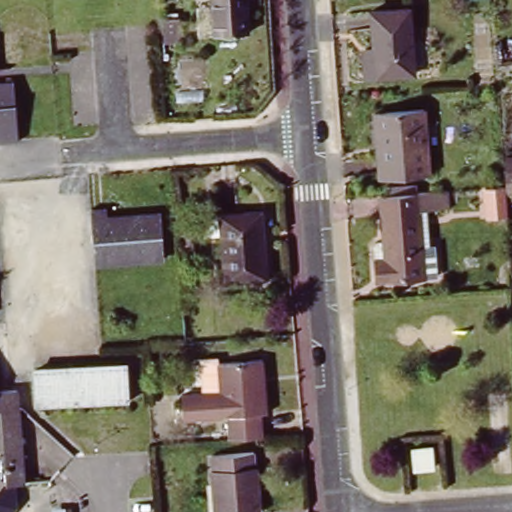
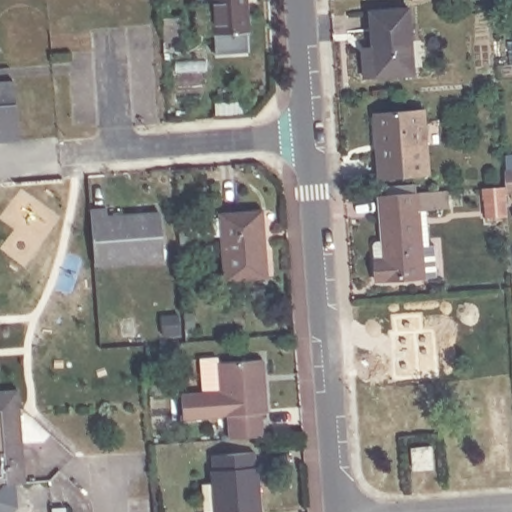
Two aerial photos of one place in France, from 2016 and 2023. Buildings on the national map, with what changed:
unchanged [(212,0),(244,0),(246,24),(214,27),(212,0)]
demolished [(494,0),(510,0),(512,21),(512,41),(497,43),(494,0)]
unchanged [(371,11),(409,7),(414,65),(362,70),(359,39),(373,38),(371,11)]
unchanged [(18,141),(0,142),(0,80),(13,79),(18,141)]
unchanged [(383,110),(422,105),(429,170),(381,175),(378,152),(387,151),(383,110)]
unchanged [(509,180),(508,177),(508,164),(512,164),(512,180),(509,180)]
unchanged [(371,259),(382,258),(376,199),(394,198),(393,190),(421,188),(421,195),(444,193),(447,209),(419,212),(422,243),(428,242),(431,274),(374,280),(371,259)]
unchanged [(108,207),(109,221),(158,217),(162,258),(93,264),(88,209),(108,207)]
unchanged [(264,269),(226,273),(220,211),(259,208),(264,269)]
unchanged [(233,439),(231,419),(188,422),(186,396),(225,393),(223,363),(258,360),(259,381),(265,381),(268,416),(264,416),(265,436),(233,439)]
demolished [(33,364),(129,362),(131,402),(35,406),(33,364)]
unchanged [(0,488),(0,389),(16,389),(28,484),(4,484),(0,488)]
unchanged [(257,450),(263,512),(219,512),(213,454),(257,450)]
new [(66,507),(66,512),(52,512),(51,508),(66,507)]

